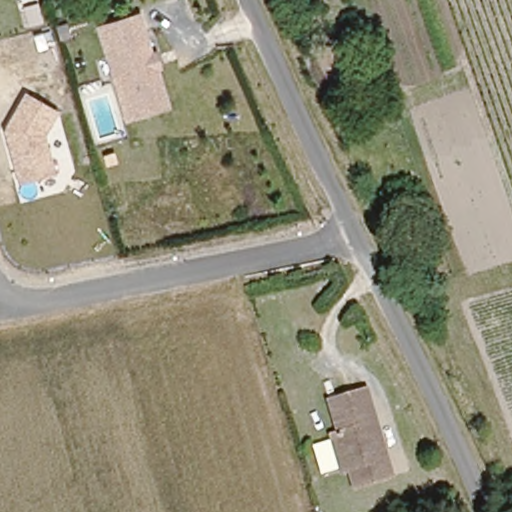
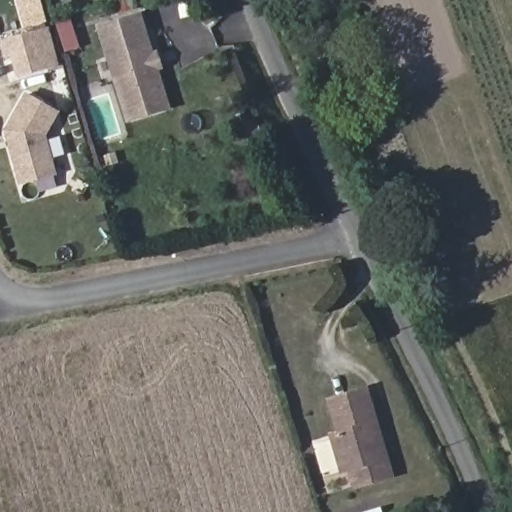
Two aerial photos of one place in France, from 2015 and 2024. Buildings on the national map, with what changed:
unchanged [(153,57),(158,56),(162,69),(157,70),(167,110),(126,120),(101,27),(142,16),(153,57)]
new [(17,76),(11,56),(5,59),(0,41),(50,26),(61,66),(17,76)]
unchanged [(48,134),(57,174),(19,182),(5,135),(25,96),(61,112),(48,134)]
unchanged [(391,473),(355,485),(349,466),(343,468),(333,434),(337,433),(326,398),(364,386),(374,420),(385,455),(391,473)]

